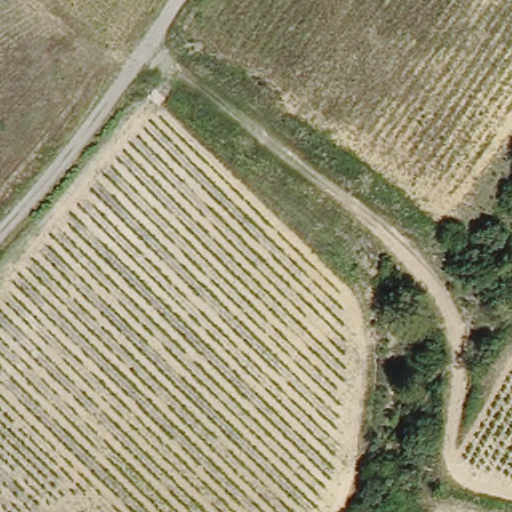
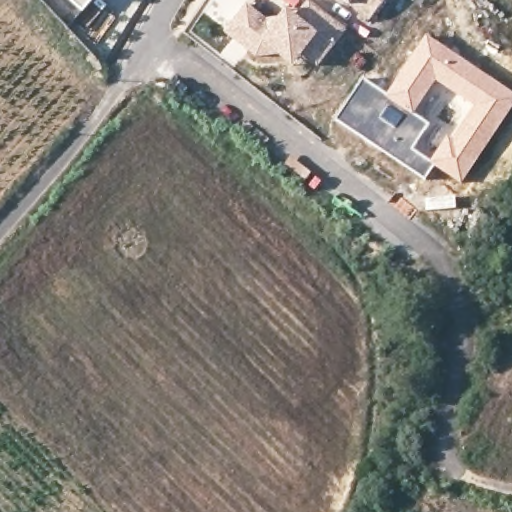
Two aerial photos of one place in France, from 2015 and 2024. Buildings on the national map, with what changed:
new [(82,12),(68,0),(92,0),(82,12)]
new [(251,4),(270,19),(285,17),(292,8),(301,15),(312,0),(315,0),(351,28),(321,65),(306,53),(297,65),(282,54),(261,56),(229,31),(251,4)]
new [(374,21),(347,0),(390,0),(374,21)]
new [(512,92),(512,109),(462,184),(434,166),(435,164),(430,160),(448,135),(453,138),(475,106),(436,81),(415,112),(389,95),(427,36),(512,92)]
new [(363,77),(386,92),(416,112),(432,122),(415,149),(430,160),(435,164),(434,166),(424,180),(334,120),(363,77)]

